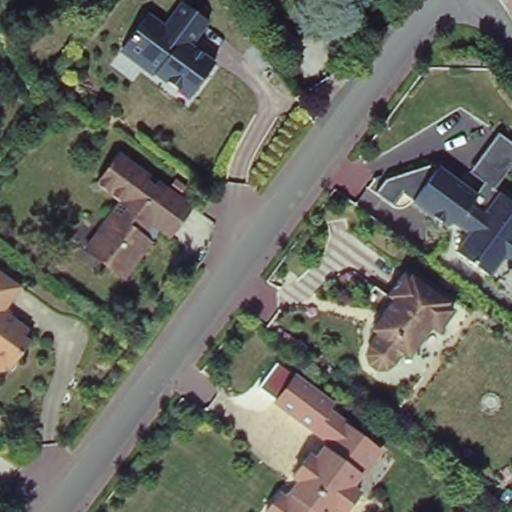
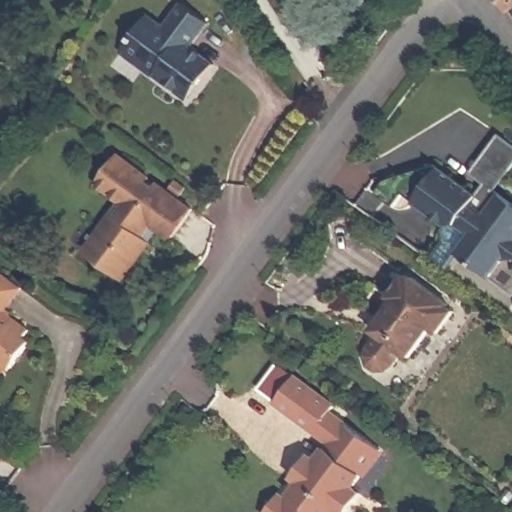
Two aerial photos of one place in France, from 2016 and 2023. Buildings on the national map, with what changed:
unchanged [(175,84),(150,65),(148,68),(120,45),(122,43),(120,42),(146,8),(164,21),(180,0),(186,0),(208,17),(189,41),(213,60),(196,80),(186,93),(175,84)]
unchanged [(500,0),(512,0),(512,7),(507,10),(500,0)]
unchanged [(392,205),(376,193),(385,179),(431,164),(438,169),(444,161),(463,176),(498,130),(512,141),(512,166),(497,189),(512,200),(512,255),(506,256),(494,272),(460,247),(470,233),(456,222),(451,227),(413,202),(403,208),(392,205)]
unchanged [(121,271),(105,260),(107,257),(85,241),(110,207),(120,195),(94,177),(115,147),(147,170),(144,174),(152,180),(155,176),(190,201),(169,230),(157,222),(149,233),(121,271)]
unchanged [(17,284),(1,304),(29,326),(24,332),(31,338),(6,367),(4,363),(0,368),(0,270),(17,284)]
unchanged [(411,277),(413,275),(450,302),(449,304),(456,309),(440,332),(433,327),(411,356),(405,352),(396,364),(388,370),(378,370),(370,364),(368,355),(371,346),(380,334),(375,329),(396,299),(390,295),(406,273),(411,277)]
unchanged [(336,403),(386,442),(357,479),(365,485),(346,512),(342,512),(339,508),(336,512),(266,512),(265,511),(283,486),(290,490),(303,473),(297,468),(314,447),(320,452),(327,441),(273,402),(278,398),(260,386),(277,362),(295,373),(297,370),(339,399),(336,403)]

